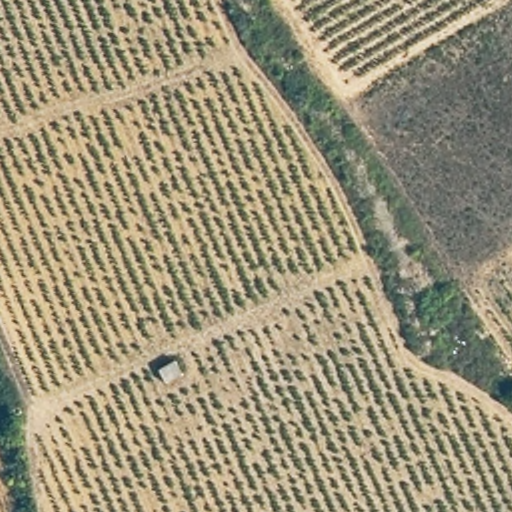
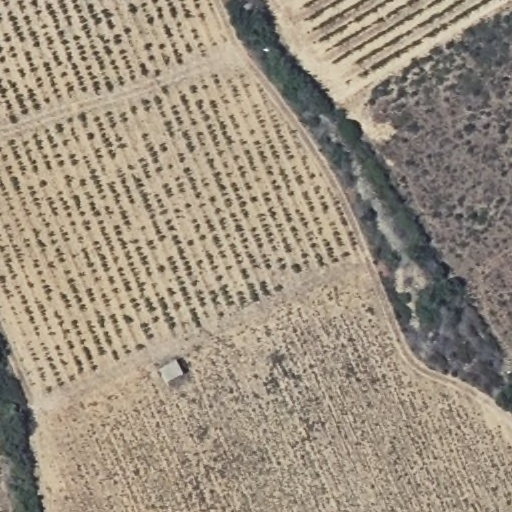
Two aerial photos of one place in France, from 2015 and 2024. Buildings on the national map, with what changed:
unchanged [(157,368),(172,358),(183,376),(169,384),(157,368)]

